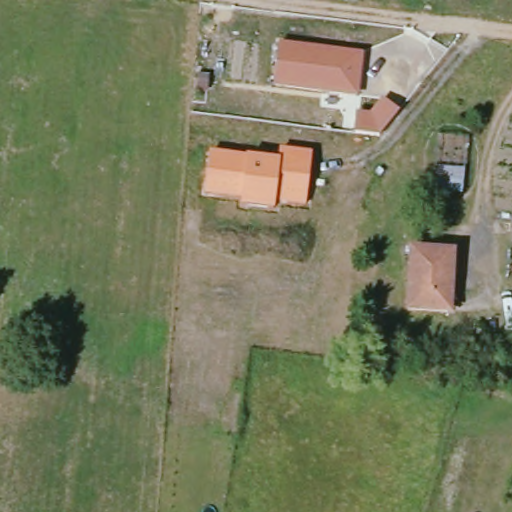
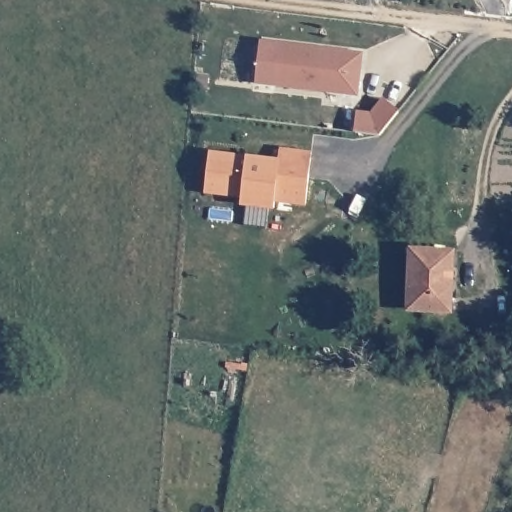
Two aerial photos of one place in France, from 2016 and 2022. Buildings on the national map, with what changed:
unchanged [(358,100),(273,90),(280,45),(362,55),(358,100)]
unchanged [(370,114),(381,100),(398,112),(377,137),(355,135),(356,111),(370,114)]
unchanged [(305,207),(275,203),(273,212),(240,207),(241,200),(204,196),(210,154),(246,157),(277,162),(279,150),(312,152),(305,207)]
unchanged [(453,252),(450,311),(409,308),(412,250),(453,252)]

